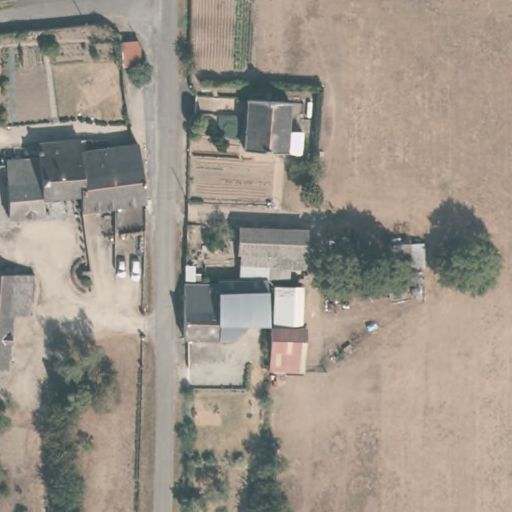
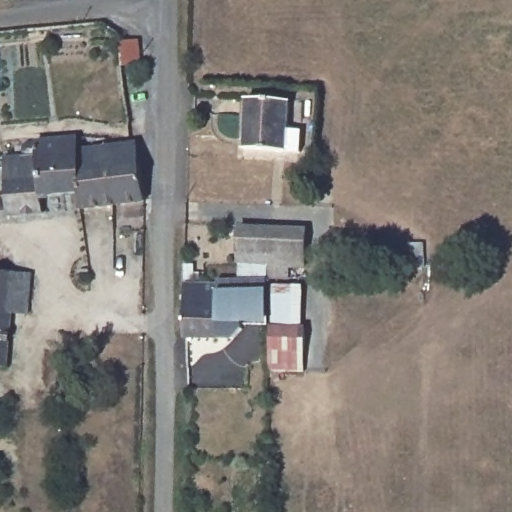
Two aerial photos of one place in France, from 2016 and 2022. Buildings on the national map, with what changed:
unchanged [(142,67),(125,69),(121,45),(140,44),(142,67)]
unchanged [(246,151),(247,103),(290,104),(288,131),(305,132),(302,154),(246,151)]
unchanged [(79,211),(77,194),(40,198),(40,216),(4,219),(3,213),(0,213),(0,195),(5,194),(5,164),(32,160),(31,146),(79,141),(81,151),(146,144),(145,204),(79,211)]
unchanged [(239,262),(240,252),(236,252),(236,228),(303,230),(302,267),(286,267),(287,277),(268,276),(264,276),(238,276),(239,262)]
unchanged [(425,273),(390,274),(387,248),(424,242),(425,273)]
unchanged [(192,262),(193,270),(197,270),(197,277),(182,277),(184,262),(192,262)]
unchanged [(26,313),(8,312),(5,367),(0,367),(0,273),(26,273),(26,313)]
unchanged [(182,282),(217,283),(217,278),(265,279),(265,315),(240,316),(240,330),(231,339),(180,337),(182,282)]
unchanged [(270,337),(272,337),(270,279),(297,280),(297,321),(303,322),(303,382),(270,381),(270,337)]

